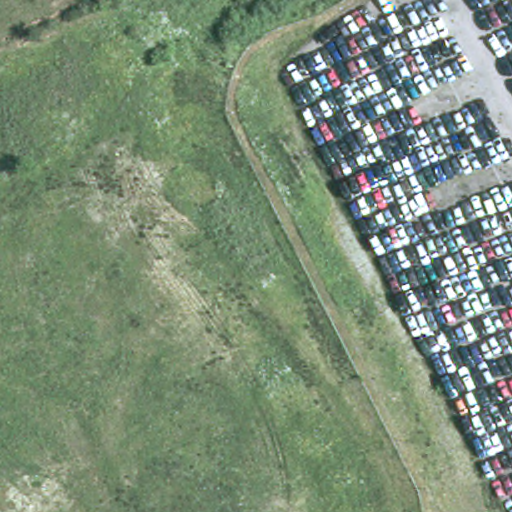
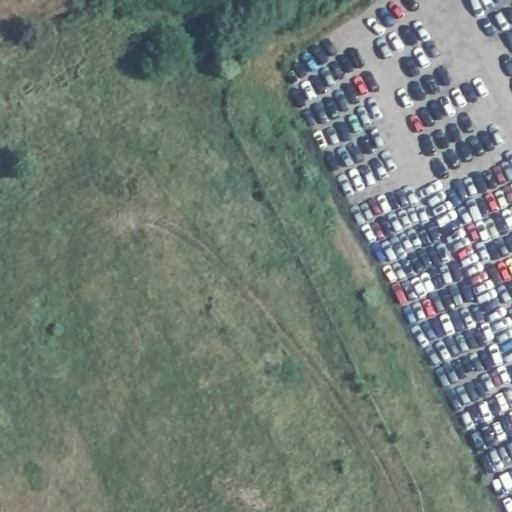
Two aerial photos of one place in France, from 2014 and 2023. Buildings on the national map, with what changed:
[]

